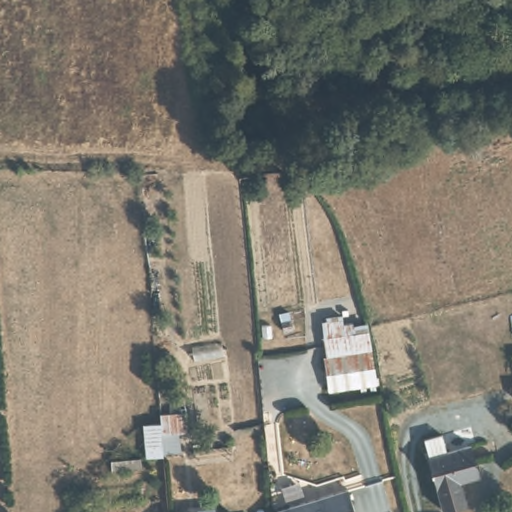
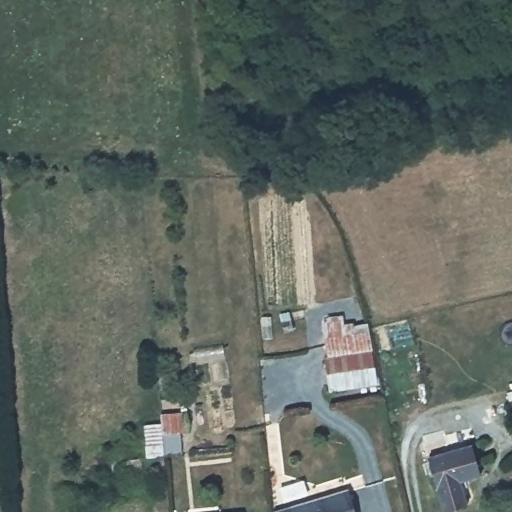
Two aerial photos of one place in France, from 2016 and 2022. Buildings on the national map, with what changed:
unchanged [(322,339),(369,331),(377,381),(328,390),(322,339)]
unchanged [(140,427),(159,425),(156,411),(187,408),(188,447),(143,457),(140,427)]
unchanged [(443,426),(447,440),(470,435),(478,473),(462,477),(468,504),(435,512),(430,512),(412,434),(443,426)]
unchanged [(352,512),(275,512),(275,509),(346,488),(352,512)]

